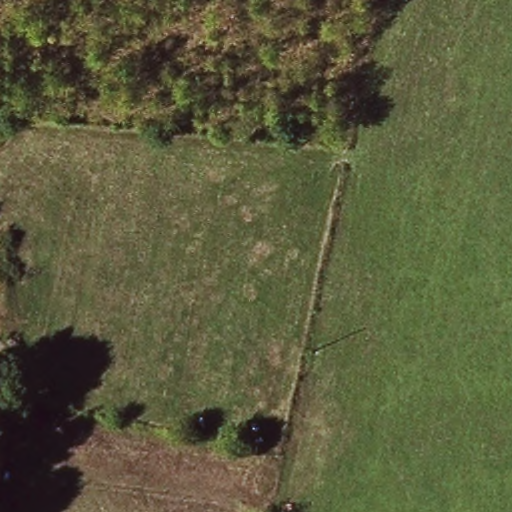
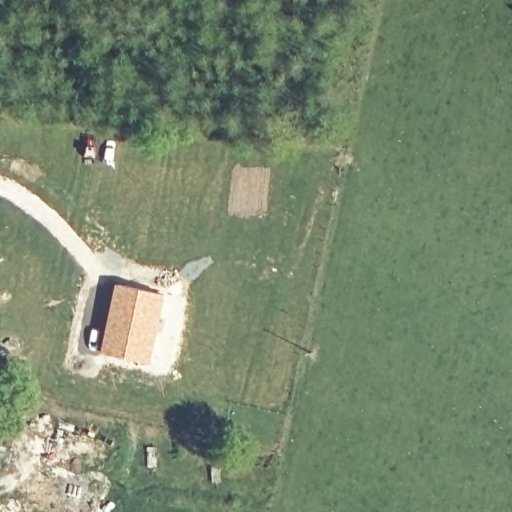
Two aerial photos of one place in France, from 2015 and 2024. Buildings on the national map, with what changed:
new [(116,283),(170,295),(152,364),(100,353),(116,283)]

